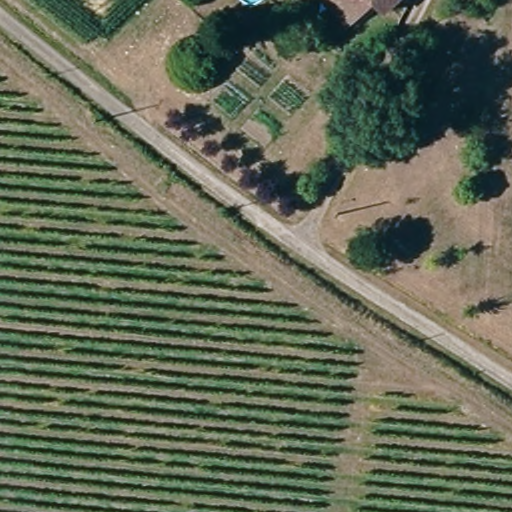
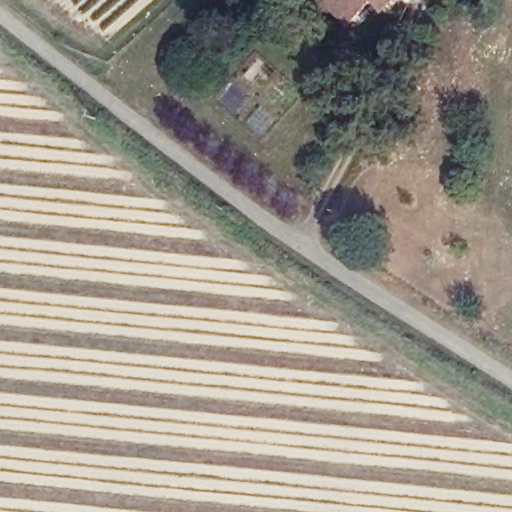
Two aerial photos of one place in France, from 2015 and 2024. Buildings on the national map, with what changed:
unchanged [(323,0),(381,0),(350,29),(323,0)]

